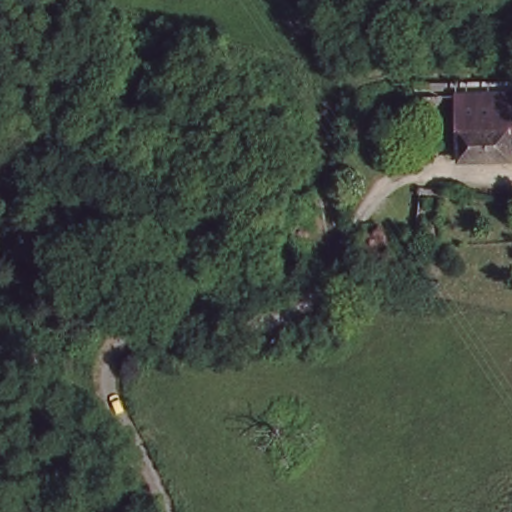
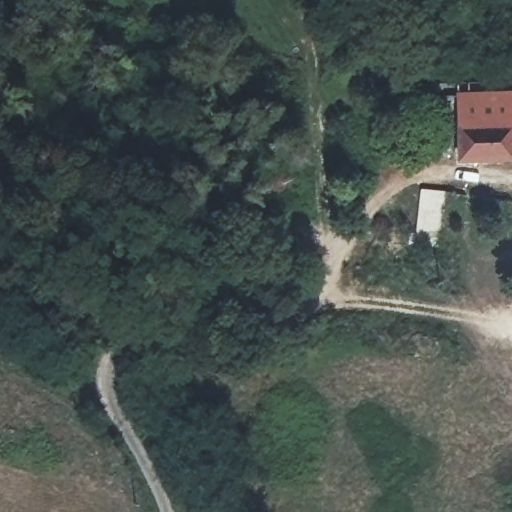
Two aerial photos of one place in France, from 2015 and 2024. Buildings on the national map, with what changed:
unchanged [(426,132),(442,132),(443,102),(443,90),(512,89),(512,164),(440,164),(441,155),(425,154),(426,132)]
unchanged [(397,244),(400,197),(432,198),(428,246),(397,244)]

